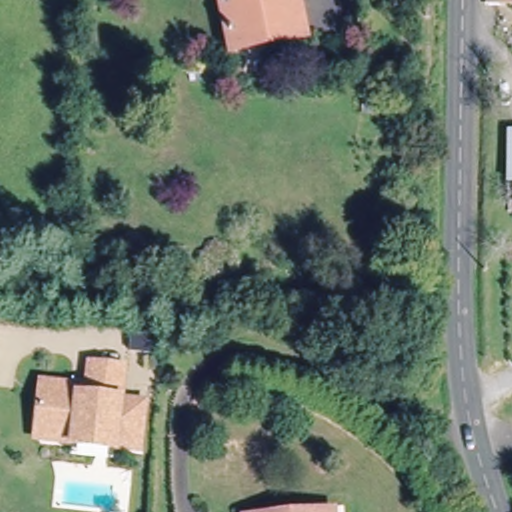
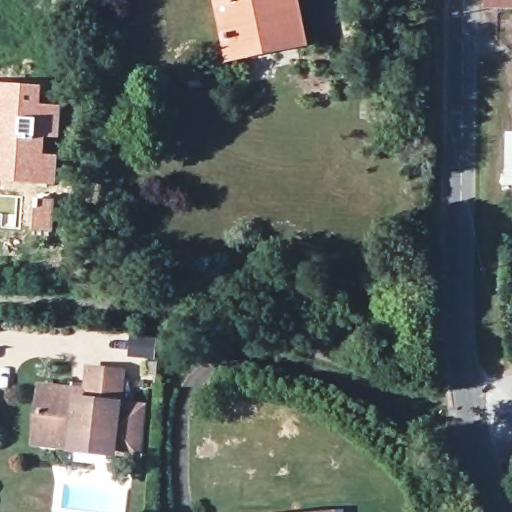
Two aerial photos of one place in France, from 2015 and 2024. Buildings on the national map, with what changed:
unchanged [(240,0),(291,0),(301,42),(232,58),(220,4),(240,0)]
unchanged [(486,0),(512,0),(512,7),(485,6),(486,0)]
new [(44,84),(44,102),(63,104),(61,139),(47,139),(46,152),(59,154),(56,184),(0,181),(0,81),(44,84)]
unchanged [(506,133),(512,133),(512,184),(505,184),(506,133)]
new [(36,198),(55,198),(54,230),(34,230),(36,198)]
unchanged [(45,444),(37,433),(37,427),(34,422),(36,399),(42,396),(69,399),(70,389),(85,391),(86,382),(88,367),(121,371),(117,404),(141,407),(139,429),(135,429),(132,444),(122,452),(110,451),(69,446),(45,444)]

